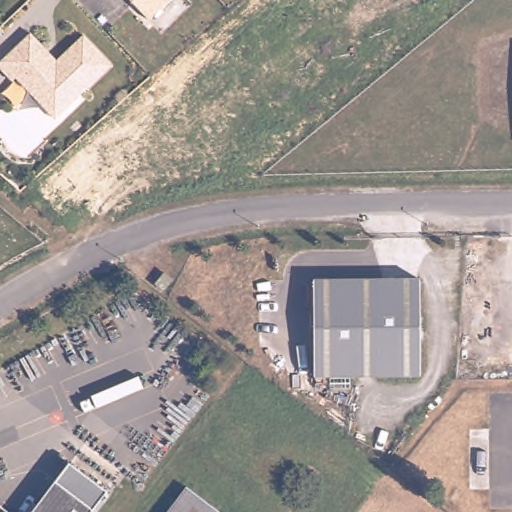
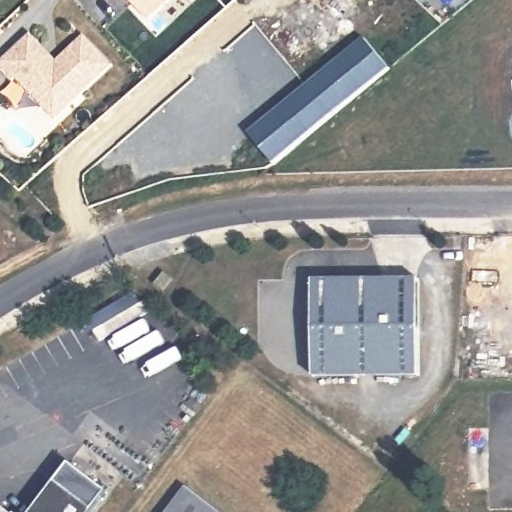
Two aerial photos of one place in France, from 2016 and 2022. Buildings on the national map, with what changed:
unchanged [(127,0),(168,0),(146,21),(127,0)]
unchanged [(14,78),(10,81),(0,70),(0,61),(29,33),(44,49),(55,61),(82,36),(110,65),(66,106),(53,119),(42,108),(14,78)]
new [(365,37),(390,67),(275,163),(250,132),(365,37)]
unchanged [(322,378),(317,378),(314,333),(312,282),(417,277),(421,357),(422,373),(322,378)]
demolished [(97,423),(109,432),(92,453),(82,446),(97,423)]
unchanged [(98,500),(89,512),(30,512),(59,471),(98,500)]
unchanged [(241,512),(166,512),(194,476),(241,512)]

